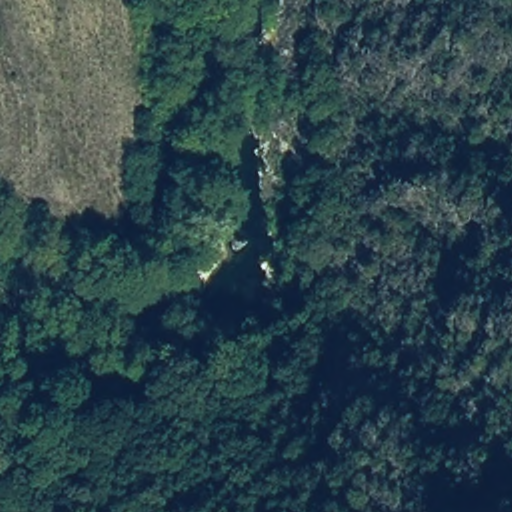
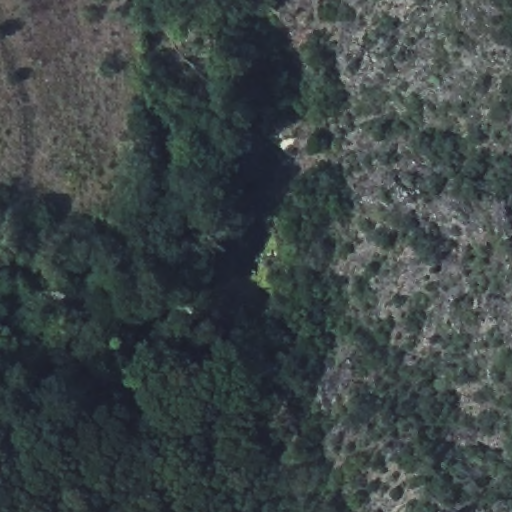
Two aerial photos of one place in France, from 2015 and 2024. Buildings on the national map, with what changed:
[]

